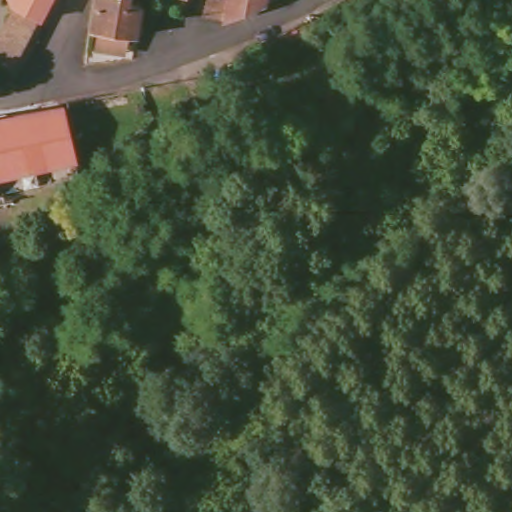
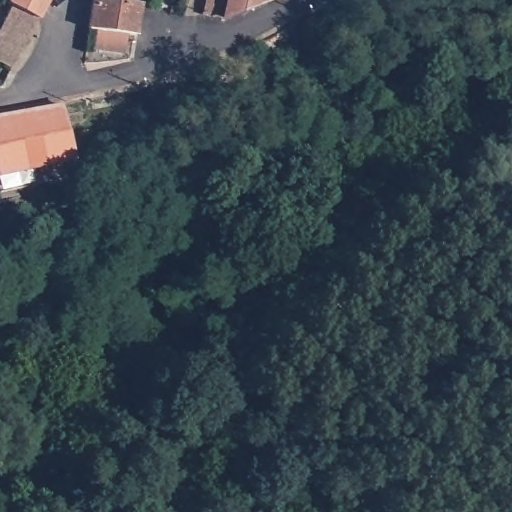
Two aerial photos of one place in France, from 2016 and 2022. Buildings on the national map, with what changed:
unchanged [(15,8),(10,5),(10,0),(51,0),(40,20),(15,8)]
unchanged [(90,20),(93,0),(127,0),(137,2),(132,33),(129,54),(108,60),(113,28),(90,20)]
unchanged [(209,0),(266,0),(265,4),(228,17),(205,14),(209,0)]
unchanged [(40,20),(13,70),(0,62),(0,37),(15,8),(40,20)]
unchanged [(73,157),(0,173),(0,115),(60,105),(73,157)]

